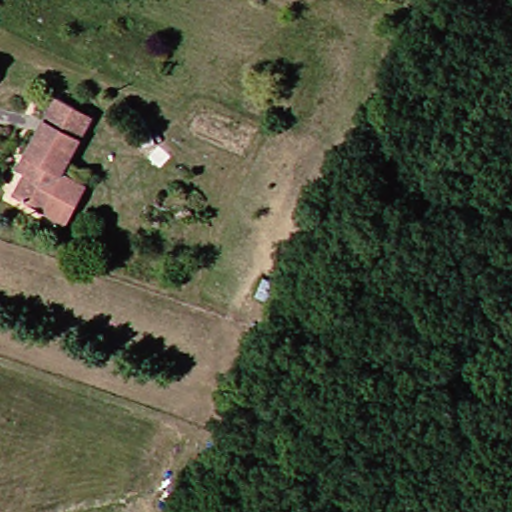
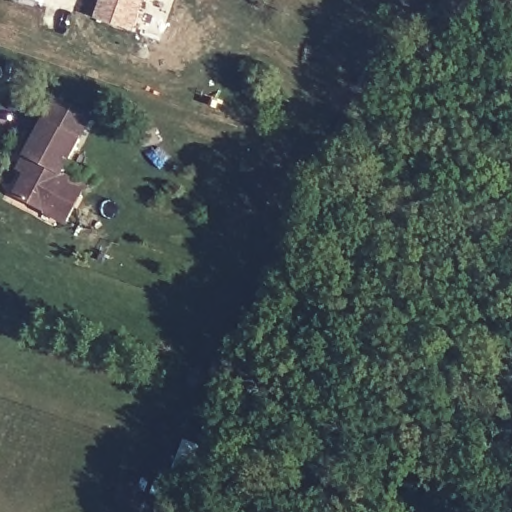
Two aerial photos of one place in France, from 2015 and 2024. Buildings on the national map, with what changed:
new [(96,19),(103,0),(152,0),(145,4),(135,32),(96,19)]
unchanged [(31,173),(22,170),(62,96),(98,115),(66,171),(91,186),(69,223),(19,195),(31,173)]

